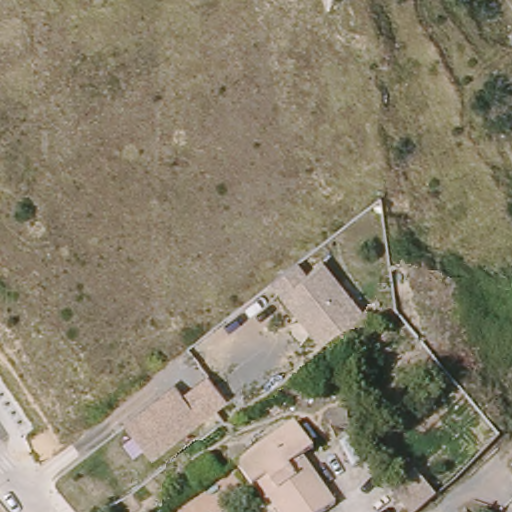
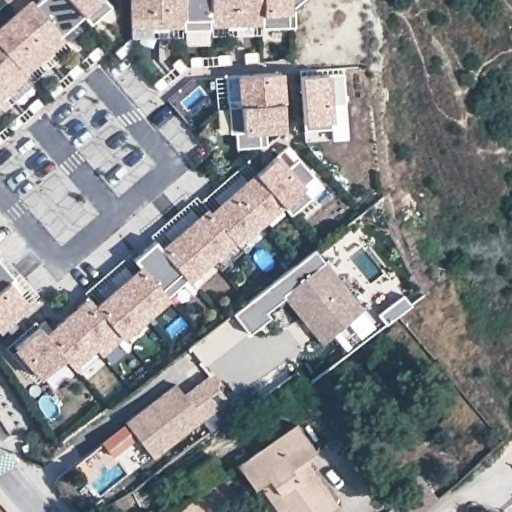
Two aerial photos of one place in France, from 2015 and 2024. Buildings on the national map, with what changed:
new [(30,0),(31,0),(34,3),(33,4),(59,35),(60,34),(64,39),(44,57),(10,17),(30,0)]
new [(34,3),(37,0),(70,0),(83,15),(60,34),(59,35),(33,4),(34,3)]
new [(111,8),(90,25),(83,15),(70,0),(105,0),(111,8)]
new [(158,26),(131,27),(130,0),(157,0),(158,26)]
new [(183,26),(158,26),(157,0),(183,0),(183,26)]
new [(210,25),(211,25),(211,30),(183,31),(183,26),(183,0),(209,0),(210,25)]
new [(236,24),(211,25),(210,25),(209,0),(236,0),(236,24)]
new [(262,24),(261,24),(236,24),(236,0),(262,0),(262,24)]
new [(261,24),(262,24),(262,0),(302,0),(294,7),(294,27),(261,29),(261,24)]
new [(44,57),(25,74),(24,74),(0,46),(0,26),(10,17),(44,57)]
new [(25,74),(27,76),(6,94),(0,86),(0,46),(24,74),(25,74)]
new [(241,99),(238,75),(280,72),(283,102),(241,106),(241,105),(228,106),(227,100),(241,99)]
new [(343,73),(345,103),(329,104),(331,128),(304,131),(299,76),(343,73)]
new [(0,99),(0,86),(6,94),(0,99)]
new [(259,146),(236,148),(235,132),(230,133),(228,106),(241,105),(241,106),(283,102),(285,130),(266,132),(266,146),(259,146)]
new [(289,167),(293,163),(283,150),(287,146),(298,158),(314,176),(302,187),(311,197),(291,215),(281,205),(282,204),(256,173),(278,154),(289,167)]
new [(221,192),(228,186),(234,181),(239,187),(256,173),(282,204),(281,205),(259,224),(236,244),(233,241),(234,240),(210,213),(211,212),(226,199),(221,192)]
new [(183,284),(168,298),(141,267),(140,268),(133,260),(154,241),(161,249),(162,249),(178,235),(171,227),(177,221),(184,216),(191,224),(208,209),(210,213),(234,240),(233,241),(211,260),(188,280),(196,290),(191,294),(183,284)]
new [(314,250),(363,309),(320,342),(286,296),(264,312),(268,317),(248,332),(233,312),(314,250)]
demolished [(363,306),(322,338),(278,279),(299,261),(309,273),(328,258),(363,306)]
new [(9,281),(8,280),(0,287),(0,262),(13,277),(9,281)]
new [(117,341),(101,355),(93,347),(94,347),(68,316),(88,298),(95,306),(112,292),(118,286),(111,292),(105,284),(111,278),(118,273),(124,281),(140,268),(141,267),(168,298),(145,317),(122,337),(130,347),(125,351),(117,341)]
new [(3,326),(0,328),(0,287),(8,280),(9,281),(28,304),(11,318),(18,325),(9,333),(3,326)]
new [(44,320),(45,321),(44,322),(51,330),(68,316),(94,347),(93,347),(71,367),(63,358),(64,357),(45,335),(46,335),(38,326),(44,320)]
new [(38,326),(46,335),(45,335),(64,357),(63,358),(41,378),(14,347),(38,326)]
unchanged [(173,384),(182,395),(209,374),(228,400),(152,458),(124,423),(173,384)]
unchanged [(242,460),(301,419),(319,446),(309,453),(342,501),(325,512),(287,512),(276,496),(264,479),(259,483),(242,460)]
unchanged [(223,475),(201,492),(187,473),(209,457),(223,475)]
unchanged [(437,498),(416,512),(399,487),(419,471),(437,498)]
demolished [(0,512),(0,501),(8,512),(0,512)]
unchanged [(145,512),(149,509),(152,512),(145,512)]

